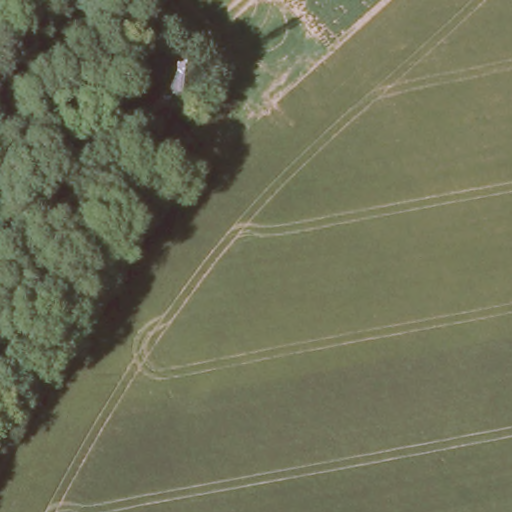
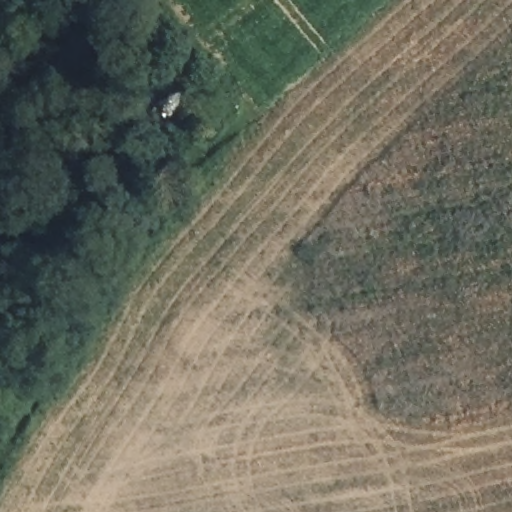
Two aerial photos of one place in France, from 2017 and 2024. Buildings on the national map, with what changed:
[]

